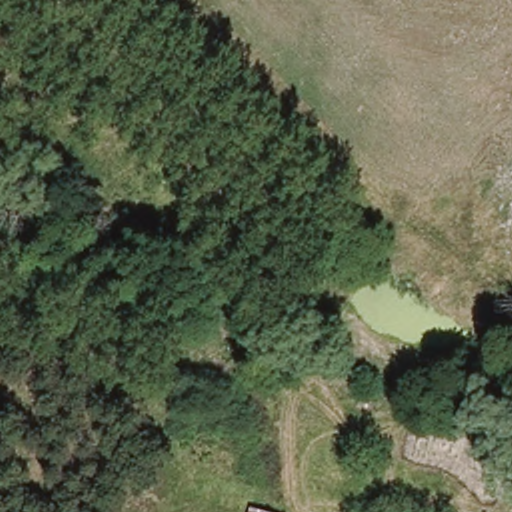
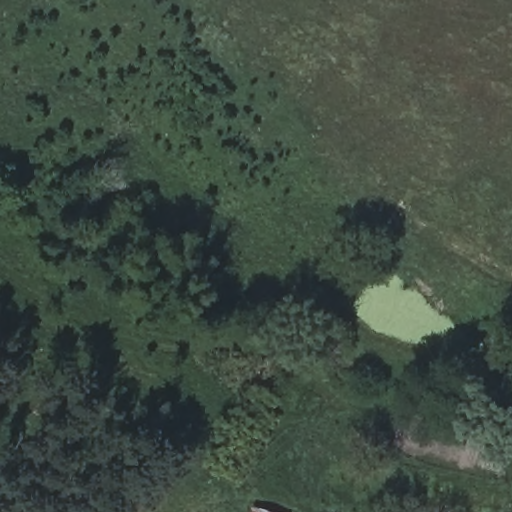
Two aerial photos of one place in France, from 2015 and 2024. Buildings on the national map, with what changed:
unchanged [(261,512),(256,512),(257,511),(261,512)]

